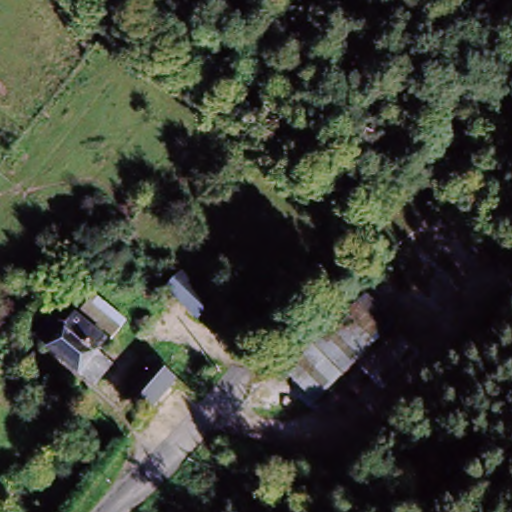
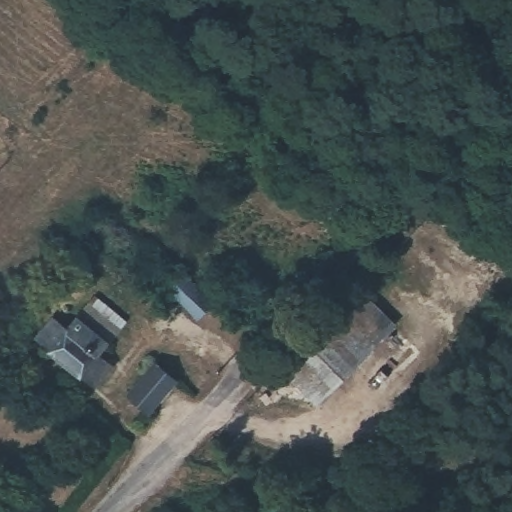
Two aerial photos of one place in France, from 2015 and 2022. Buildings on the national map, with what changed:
unchanged [(87,288),(130,314),(102,344),(115,357),(85,392),(29,341),(87,288)]
unchanged [(361,299),(424,356),(379,396),(347,369),(305,412),(277,380),(361,299)]
unchanged [(177,377),(152,407),(128,387),(153,358),(177,377)]

